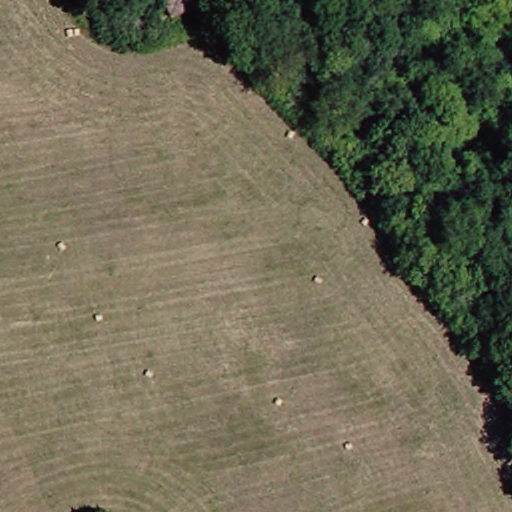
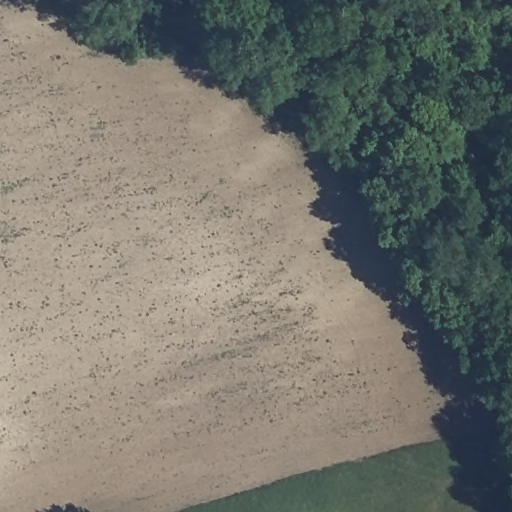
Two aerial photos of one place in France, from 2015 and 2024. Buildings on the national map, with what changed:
unchanged [(202,0),(172,10),(169,0),(202,0)]

